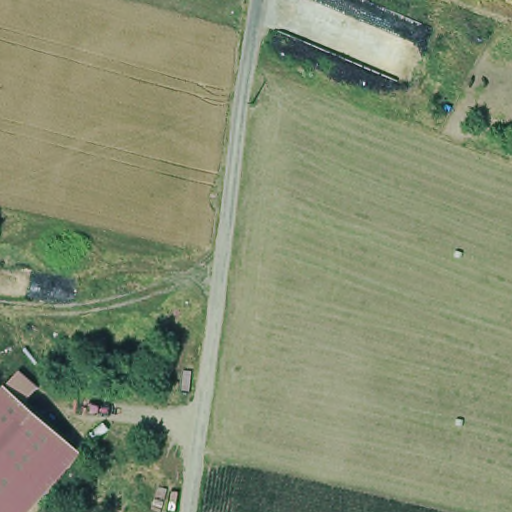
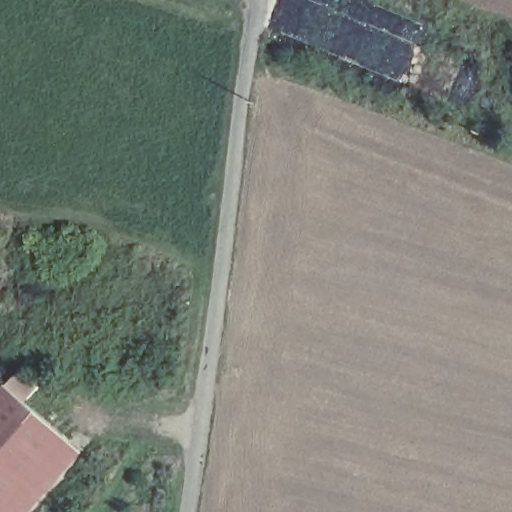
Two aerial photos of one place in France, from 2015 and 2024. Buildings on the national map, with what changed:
unchanged [(26,512),(0,512),(0,381),(77,450),(26,512)]

